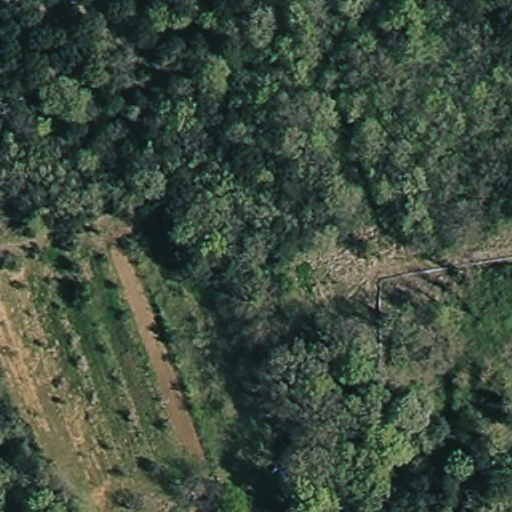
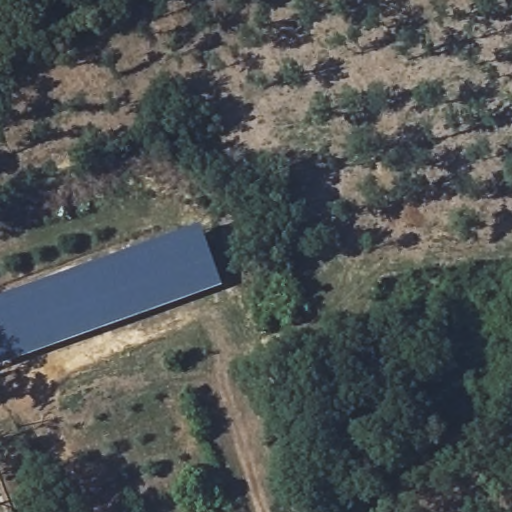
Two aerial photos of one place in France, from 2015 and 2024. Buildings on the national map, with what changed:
new [(0,300),(202,229),(224,289),(0,367),(0,300)]

